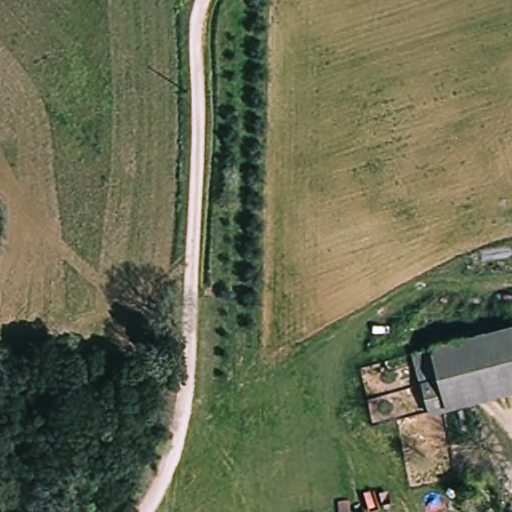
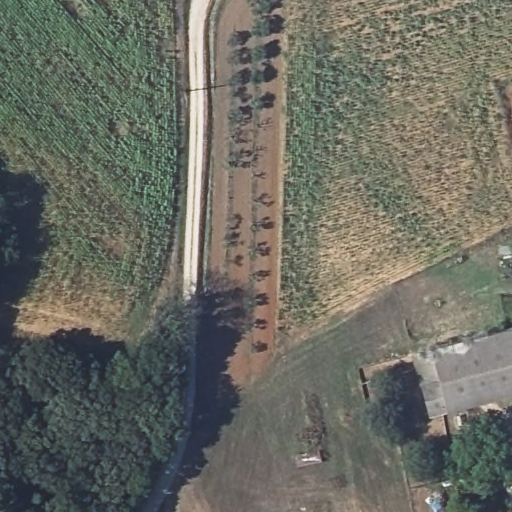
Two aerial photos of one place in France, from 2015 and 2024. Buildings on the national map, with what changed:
unchanged [(512,335),(512,395),(418,415),(412,385),(432,380),(426,352),(512,335)]

